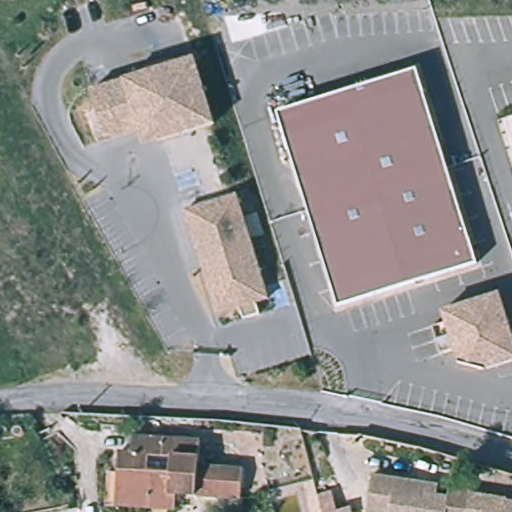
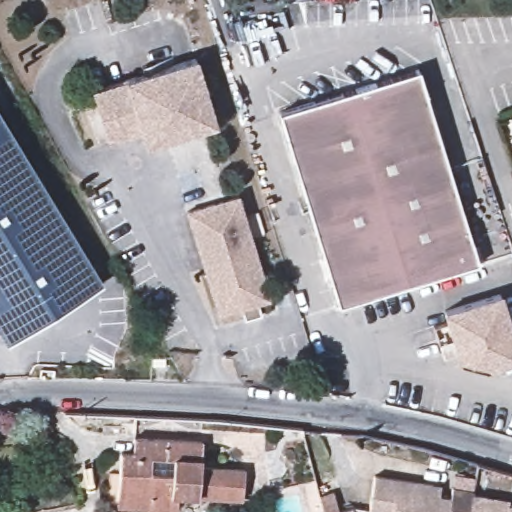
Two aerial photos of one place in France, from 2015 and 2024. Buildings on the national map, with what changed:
unchanged [(147,129),(107,143),(90,93),(192,58),(214,123),(159,142),(152,144),(147,129)]
unchanged [(344,308),(278,114),(417,66),(483,260),(344,308)]
new [(102,283),(6,342),(0,333),(0,115),(102,283)]
unchanged [(239,195),(274,297),(262,301),(266,312),(250,318),(246,307),(224,314),(189,212),(239,195)]
unchanged [(445,357),(435,329),(450,324),(446,314),(501,295),(512,327),(512,363),(490,370),(489,371),(463,365),(463,364),(459,352),(445,357)]
unchanged [(122,505),(123,497),(126,453),(138,454),(139,437),(206,442),(204,467),(249,470),(247,499),(183,494),(182,509),(122,505)]
unchanged [(369,512),(374,480),(428,488),(440,490),(439,501),(451,503),(449,512),(369,512)]
new [(324,512),(320,496),(334,492),(339,511),(353,507),(354,512),(324,512)]
unchanged [(508,504),(507,507),(512,508),(512,512),(469,512),(472,499),(508,504)]

